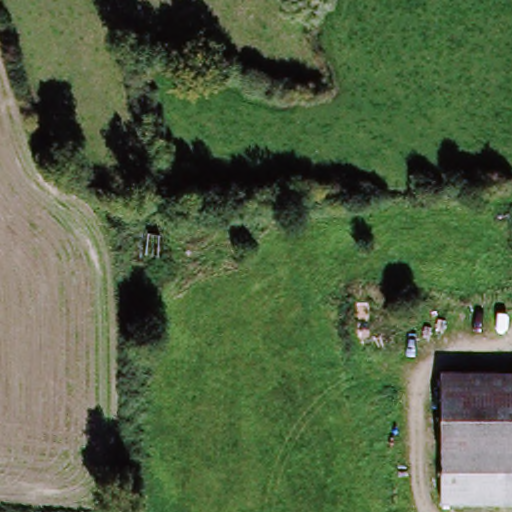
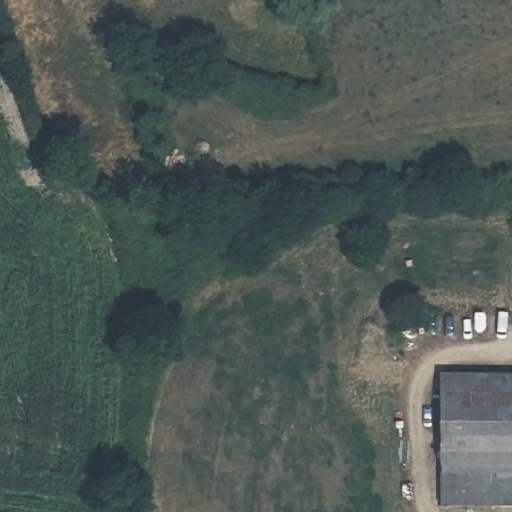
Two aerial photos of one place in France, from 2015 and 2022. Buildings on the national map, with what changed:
unchanged [(511,389),(511,477),(512,477),(512,512),(437,512),(436,388),(511,389)]
unchanged [(511,389),(512,389),(512,477),(511,477),(511,389)]

